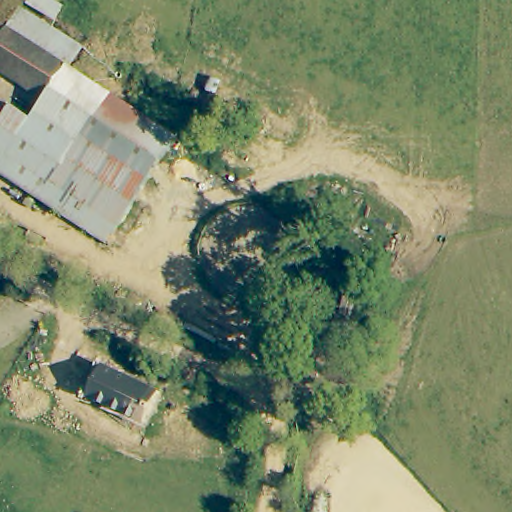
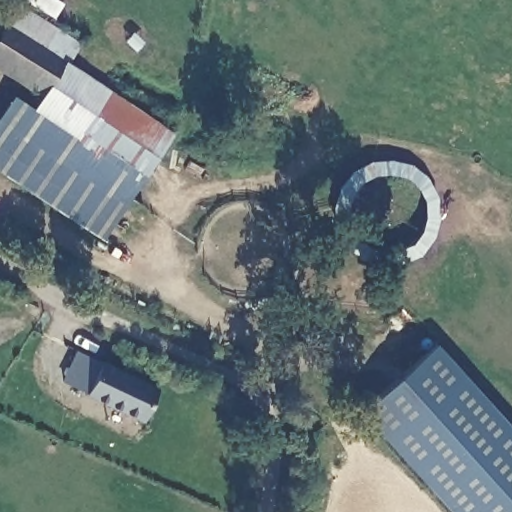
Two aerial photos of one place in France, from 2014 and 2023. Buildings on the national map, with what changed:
unchanged [(58,20),(29,3),(31,0),(54,0),(65,7),(58,20)]
unchanged [(24,8),(57,29),(45,47),(68,60),(47,93),(0,65),(0,43),(10,27),(13,29),(24,8)]
unchanged [(176,133),(107,236),(0,165),(0,114),(2,116),(13,98),(35,112),(47,93),(68,60),(176,133)]
new [(436,343),(512,427),(512,512),(451,512),(361,411),(436,343)]
unchanged [(142,421),(86,394),(87,392),(63,381),(77,351),(102,360),(158,387),(142,421)]

